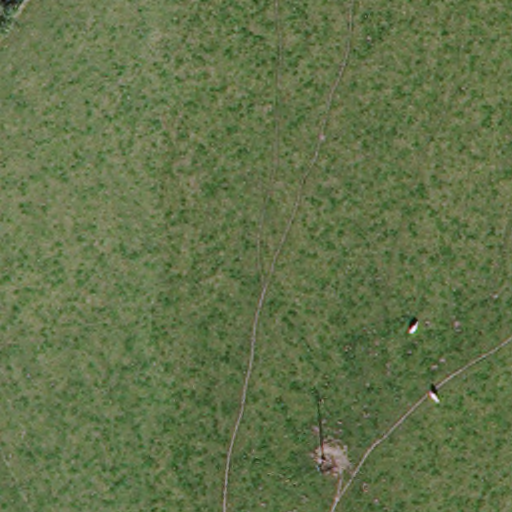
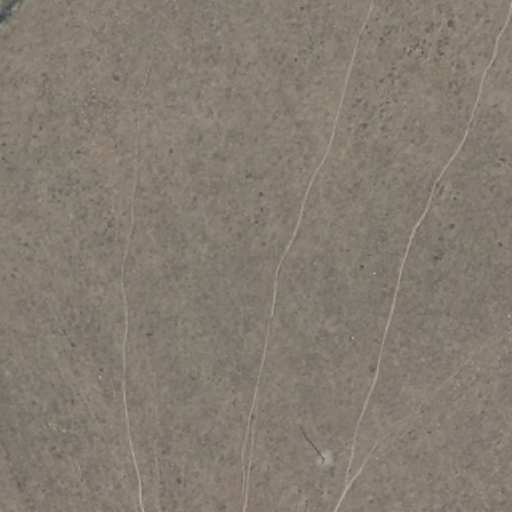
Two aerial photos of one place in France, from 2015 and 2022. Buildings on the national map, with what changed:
[]

